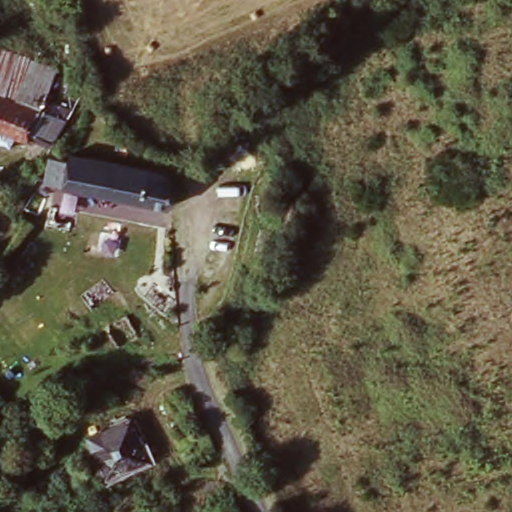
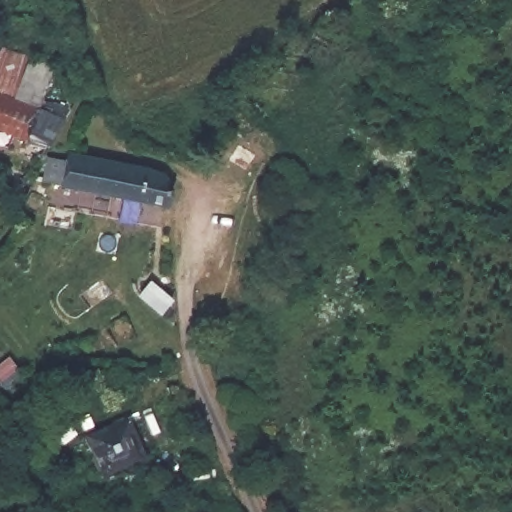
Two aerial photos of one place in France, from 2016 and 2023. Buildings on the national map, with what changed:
unchanged [(40,110),(0,97),(0,48),(54,68),(40,110)]
unchanged [(0,129),(0,97),(40,110),(40,111),(46,113),(59,116),(48,145),(0,129)]
unchanged [(228,160),(236,147),(253,158),(244,170),(228,160)]
unchanged [(153,167),(169,176),(168,203),(46,180),(51,158),(66,161),(69,150),(111,158),(153,167)]
unchanged [(153,461),(111,480),(94,436),(134,420),(153,461)]

